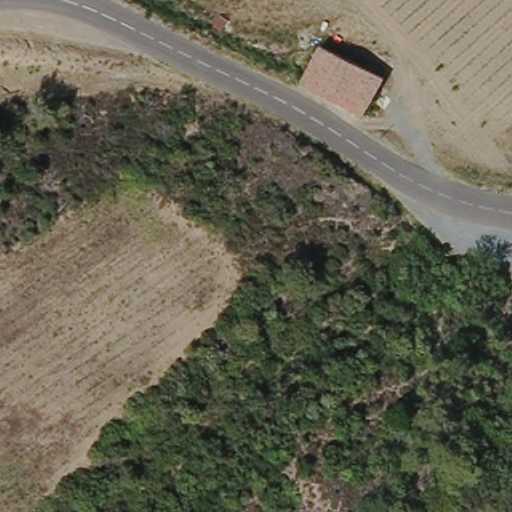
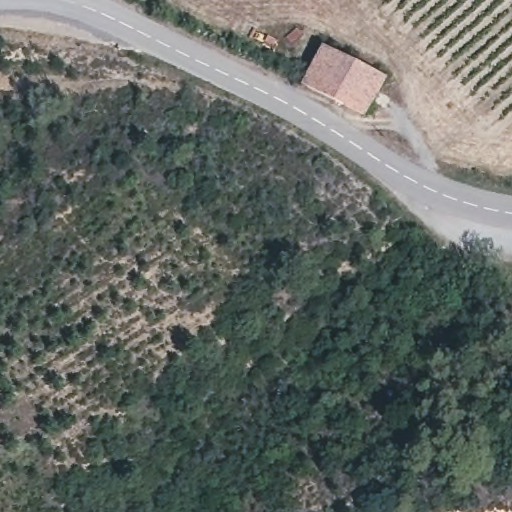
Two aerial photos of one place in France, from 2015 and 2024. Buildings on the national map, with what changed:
unchanged [(325,47),(390,76),(368,113),(304,85),(325,47)]

